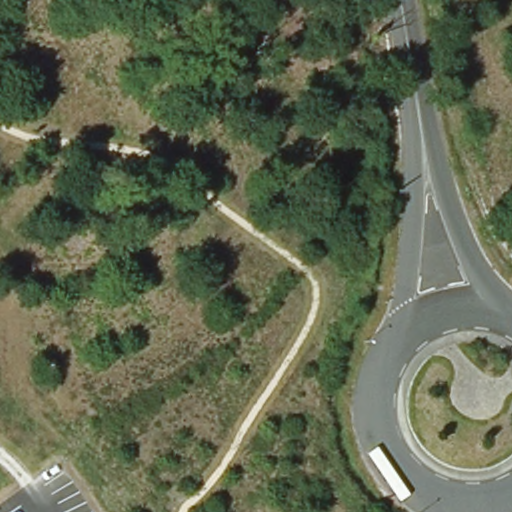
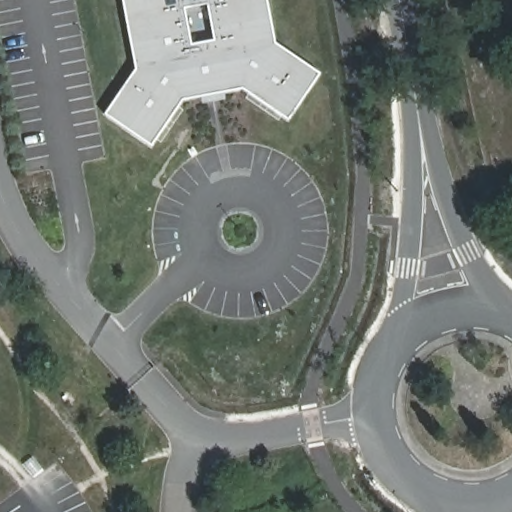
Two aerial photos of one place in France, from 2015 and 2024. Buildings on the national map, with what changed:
new [(289,119),(243,87),(183,99),(151,145),(106,114),(136,70),(123,0),(267,0),(275,43),(321,73),(289,119)]

